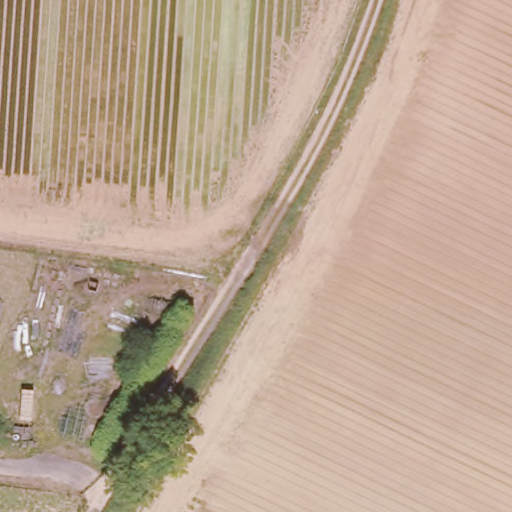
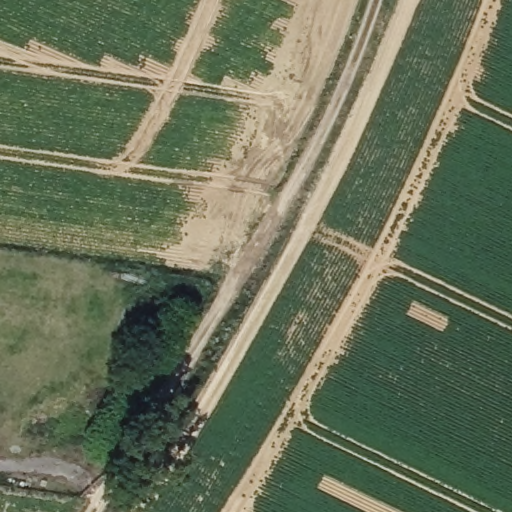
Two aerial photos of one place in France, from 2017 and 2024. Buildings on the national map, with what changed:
unchanged [(306,96),(309,101),(313,105),(311,114),(309,116),(304,119),(296,118),(292,114),(290,109),(291,105),(294,100),(299,96),(306,96)]

